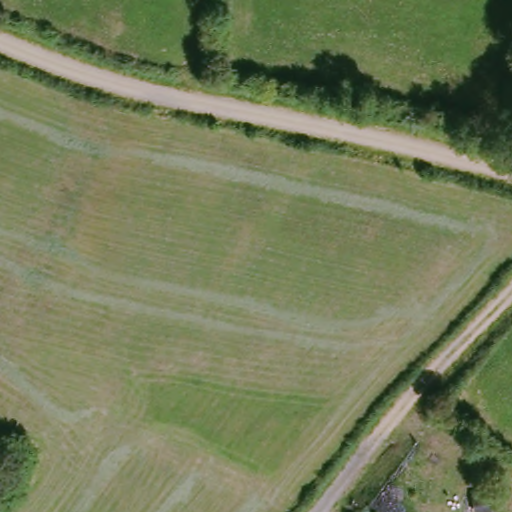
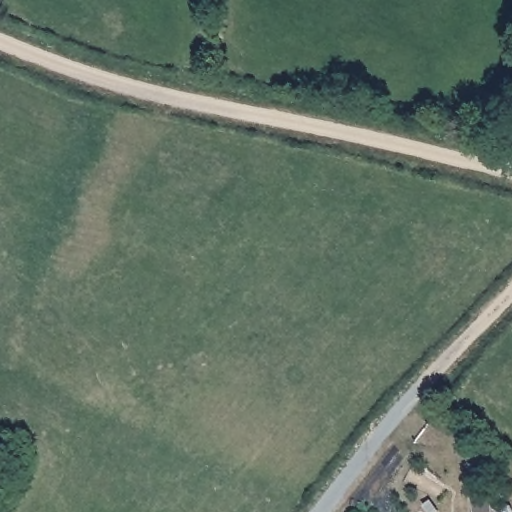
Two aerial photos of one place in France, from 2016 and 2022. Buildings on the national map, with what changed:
unchanged [(490,489),(489,506),(474,505),(475,488),(490,489)]

